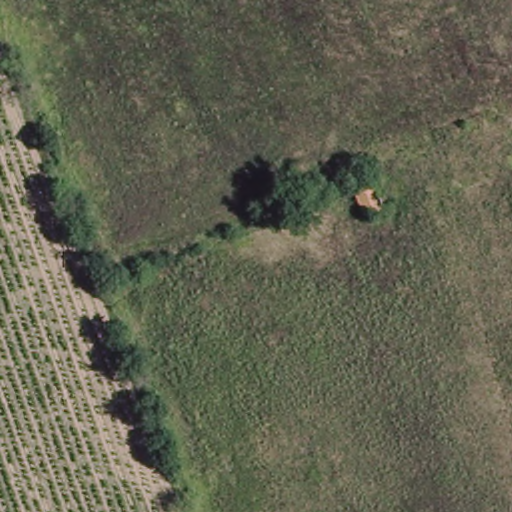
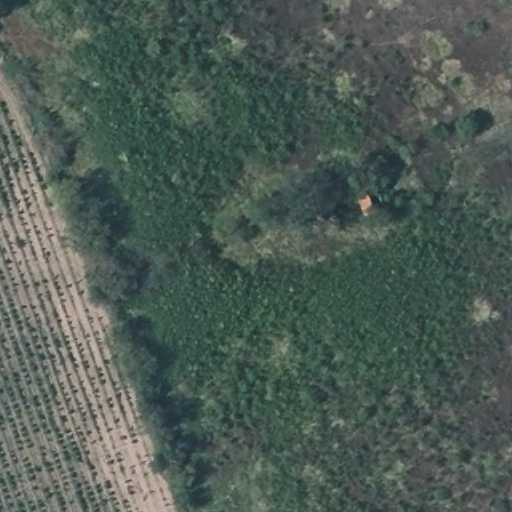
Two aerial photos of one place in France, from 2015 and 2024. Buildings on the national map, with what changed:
unchanged [(381,202),(360,210),(352,190),(373,182),(381,202)]

